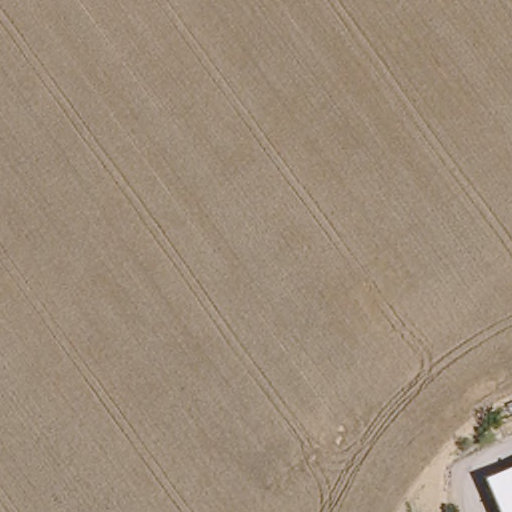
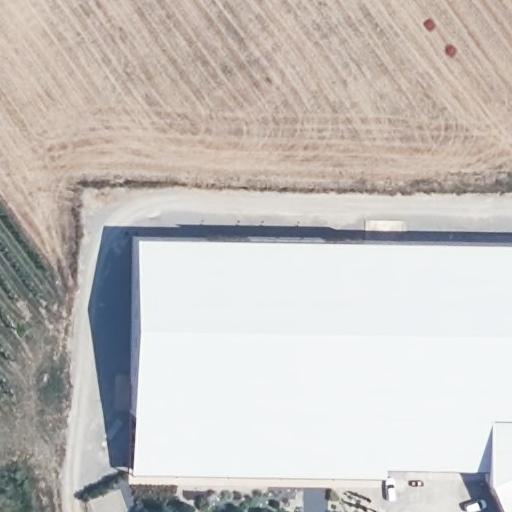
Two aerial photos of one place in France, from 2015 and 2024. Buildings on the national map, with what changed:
new [(487,483),(484,482),(485,467),(384,466),(384,474),(129,470),(133,235),(512,241),(512,473),(487,483)]
unchanged [(487,483),(512,473),(512,512),(499,512),(487,483)]

